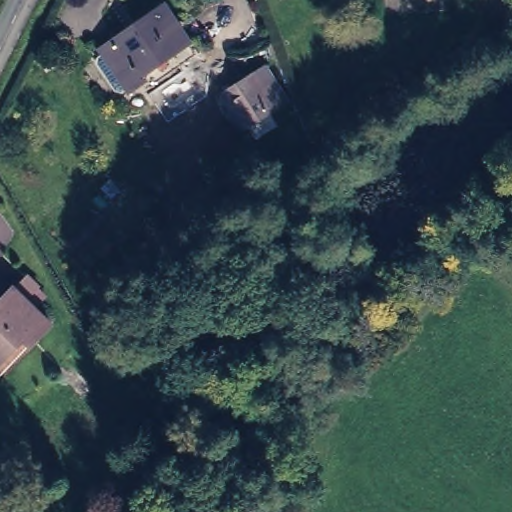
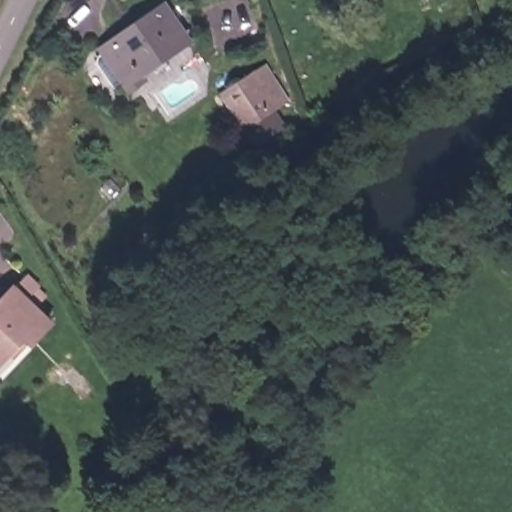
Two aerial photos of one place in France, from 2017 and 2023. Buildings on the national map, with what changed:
unchanged [(188,31),(143,62),(146,69),(132,79),(105,37),(161,0),(168,0),(188,31)]
unchanged [(236,95),(227,84),(253,66),(272,94),(255,106),(247,111),(236,95)]
unchanged [(44,317),(23,340),(16,335),(0,352),(0,292),(10,283),(44,317)]

